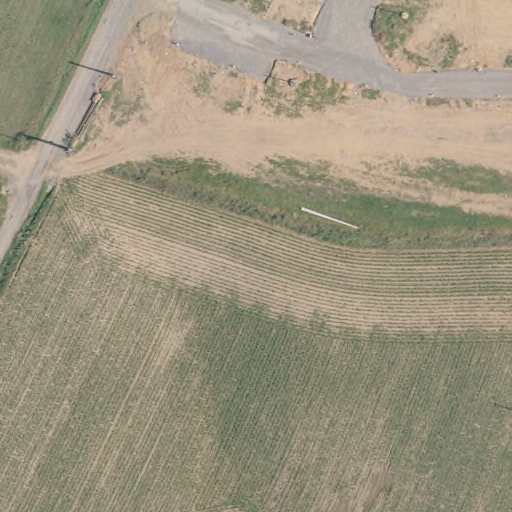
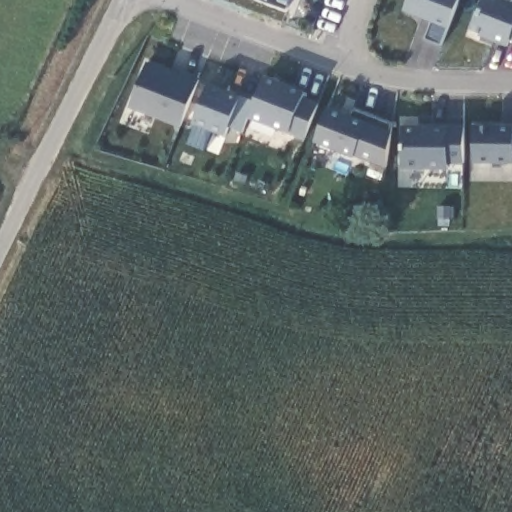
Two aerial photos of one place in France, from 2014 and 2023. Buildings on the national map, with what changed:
unchanged [(262,0),(289,0),(286,10),(262,0)]
new [(426,39),(432,22),(405,11),(409,0),(459,0),(443,46),(426,39)]
new [(507,47),(480,37),(481,32),(473,29),(482,0),(508,0),(512,1),(512,39),(511,39),(507,47)]
unchanged [(130,107),(147,61),(199,80),(181,127),(130,107)]
new [(288,133),(249,119),(265,76),(306,90),(304,95),(319,100),(304,140),(288,133)]
new [(194,123),(209,82),(243,95),(226,137),(194,123)]
new [(354,156),(315,144),(329,107),(351,114),(353,109),(393,123),(388,167),(354,156)]
new [(512,124),(512,163),(473,162),(475,125),(512,124)]
new [(403,125),(466,126),(466,164),(448,164),(448,169),(402,169),(403,125)]

